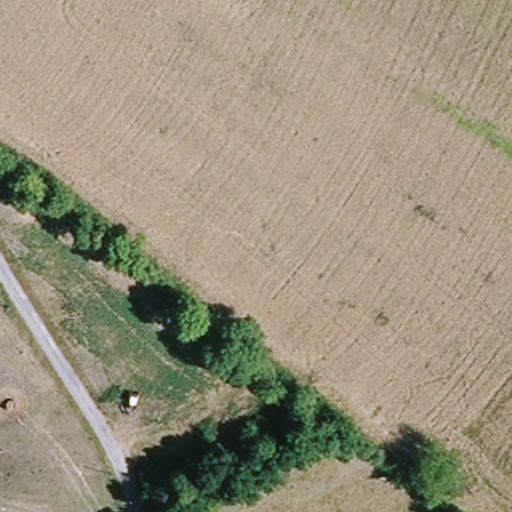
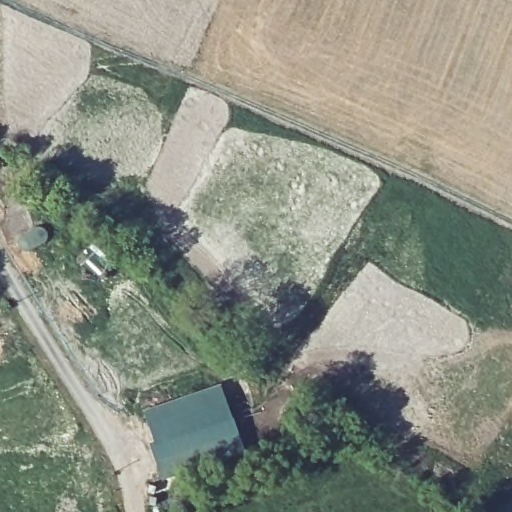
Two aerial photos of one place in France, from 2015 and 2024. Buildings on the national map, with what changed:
new [(242,451),(179,473),(166,441),(151,446),(141,413),(219,385),(231,419),(242,451)]

